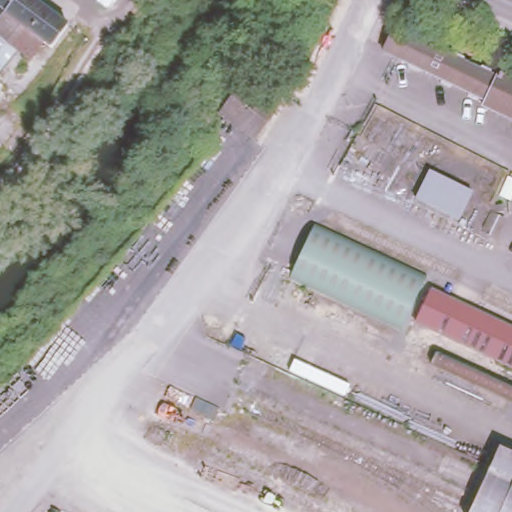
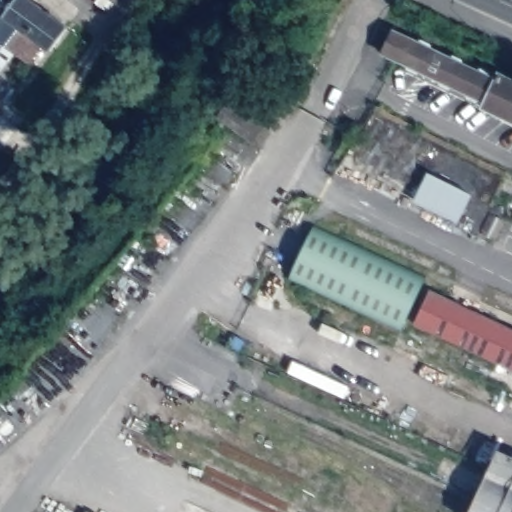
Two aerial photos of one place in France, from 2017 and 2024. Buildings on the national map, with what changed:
unchanged [(17,0),(0,21),(0,0),(17,0)]
unchanged [(34,47),(24,39),(0,72),(0,21),(17,0),(33,0),(70,27),(53,50),(40,41),(34,47)]
unchanged [(499,67),(512,74),(512,121),(481,107),(484,102),(379,51),(393,25),(494,73),(499,67)]
unchanged [(279,106),(253,141),(217,115),(242,80),(279,106)]
unchanged [(428,171),(472,192),(459,220),(414,201),(428,171)]
unchanged [(425,270),(401,326),(289,275),(314,224),(425,270)]
unchanged [(512,371),(413,325),(429,287),(512,326),(512,371)]
unchanged [(512,453),(512,512),(467,512),(469,506),(498,446),(512,453)]

